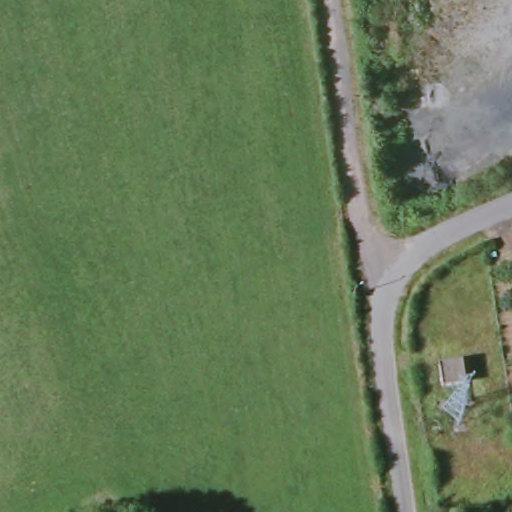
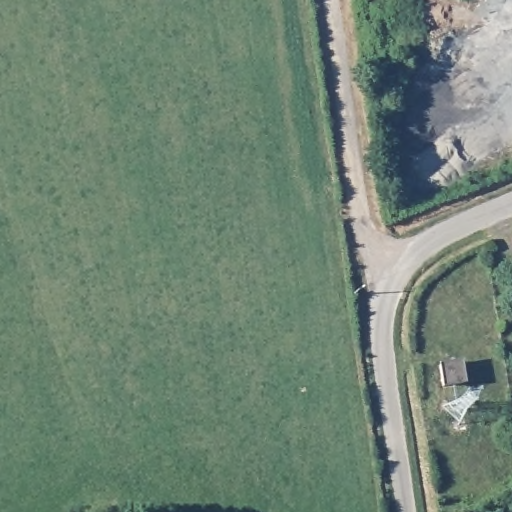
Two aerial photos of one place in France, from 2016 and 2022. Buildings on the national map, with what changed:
unchanged [(465,385),(442,390),(437,365),(460,361),(465,385)]

